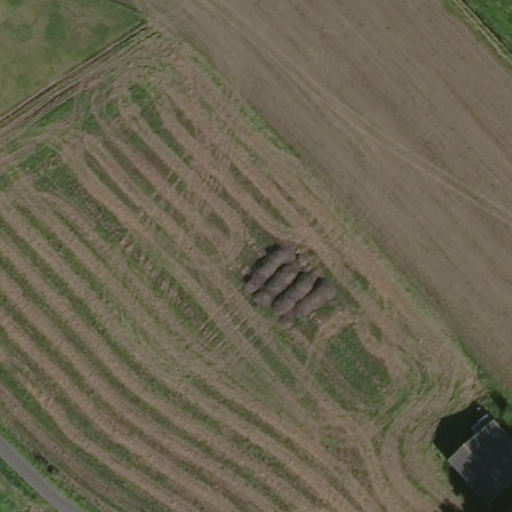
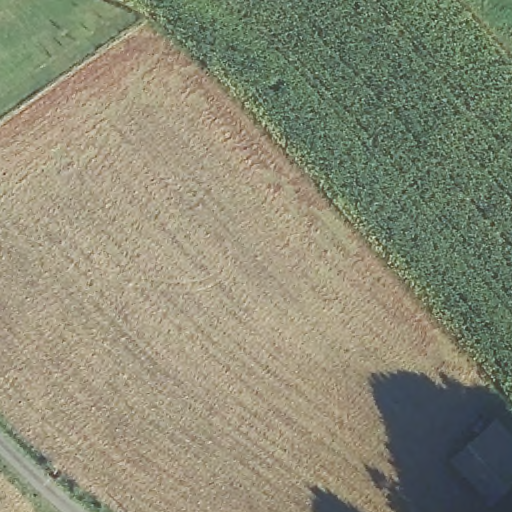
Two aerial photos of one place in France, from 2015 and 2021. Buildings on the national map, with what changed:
unchanged [(512,491),(495,506),(458,464),(502,427),(512,439),(512,491)]

